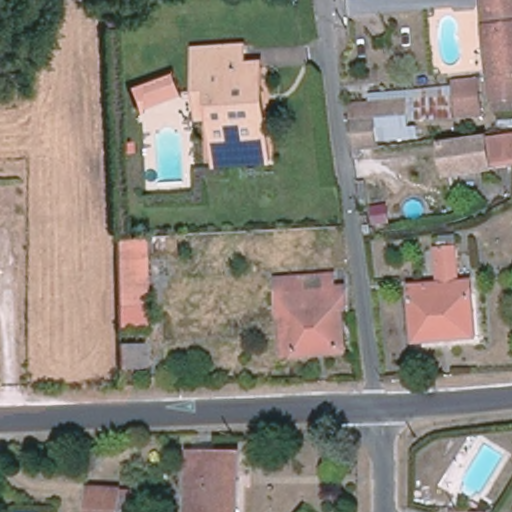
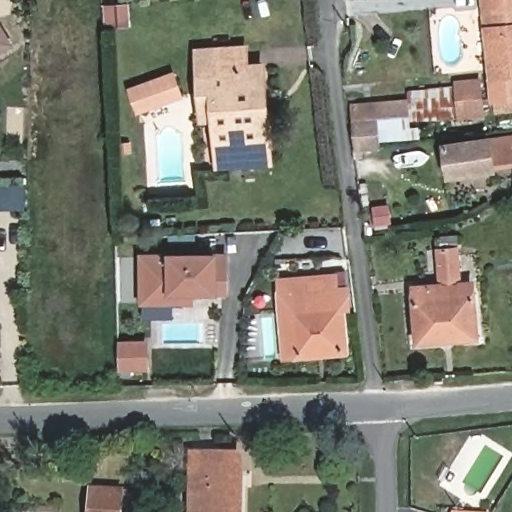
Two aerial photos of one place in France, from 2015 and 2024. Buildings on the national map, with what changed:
unchanged [(493,101),(486,26),(484,15),(483,0),(512,0),(512,99),(497,101),(493,101)]
new [(14,45),(0,54),(0,20),(14,45)]
unchanged [(201,97),(198,52),(246,50),(247,67),(263,67),(270,162),(219,166),(216,119),(203,120),(201,97)]
unchanged [(182,97),(139,112),(131,90),(174,74),(182,97)]
unchanged [(458,120),(455,93),(454,81),(482,78),(483,91),(486,117),(458,120)]
unchanged [(356,150),(354,122),(352,105),(374,104),(373,96),(442,90),(444,119),(409,120),(410,131),(418,131),(419,138),(379,141),(380,147),(356,150)]
unchanged [(512,137),(512,165),(495,167),(495,171),(449,177),(445,145),(490,139),(490,140),(511,137),(512,137)]
demolished [(145,328),(119,330),(117,287),(115,241),(143,240),(145,328)]
unchanged [(479,339),(417,343),(412,288),(441,286),(439,250),(457,249),(461,284),(475,282),(479,339)]
new [(173,303),(142,302),(143,257),(226,257),(226,293),(193,293),(193,303),(173,303)]
unchanged [(343,350),(297,353),(292,293),(282,295),(281,281),(335,276),(336,290),(347,288),(349,308),(340,309),(343,350)]
unchanged [(146,367),(121,367),(120,346),(145,345),(146,367)]
unchanged [(241,512),(192,512),(193,455),(241,456),(241,512)]
unchanged [(119,512),(92,512),(92,491),(120,492),(119,512)]

